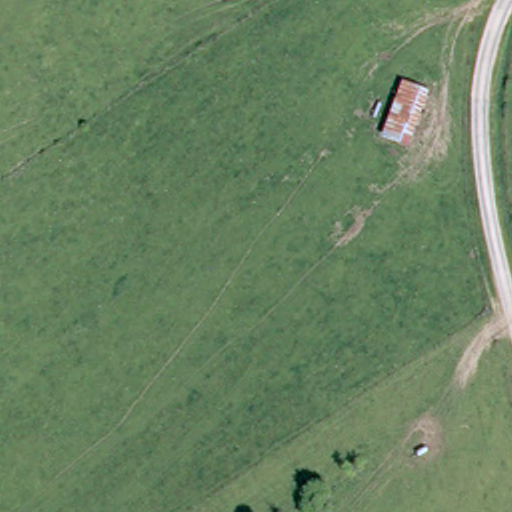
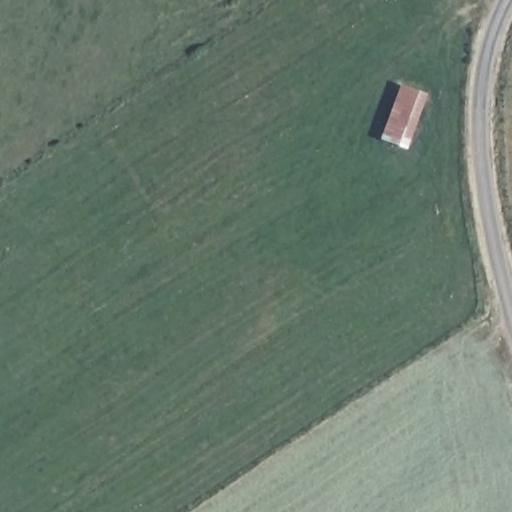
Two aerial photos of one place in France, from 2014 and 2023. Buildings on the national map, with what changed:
unchanged [(385,132),(403,86),(427,96),(409,144),(385,132)]

